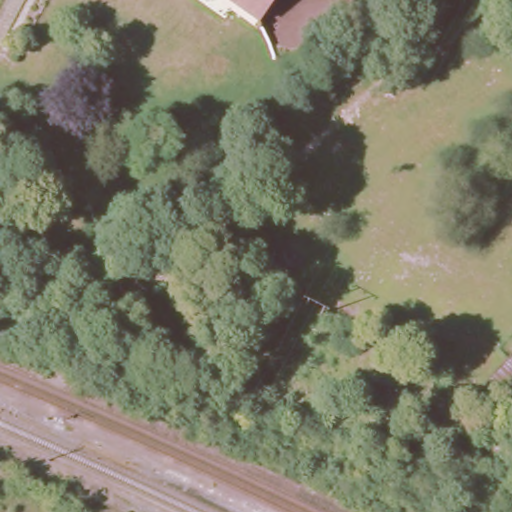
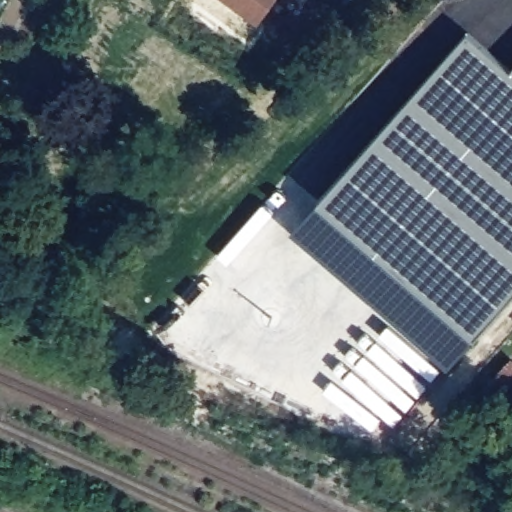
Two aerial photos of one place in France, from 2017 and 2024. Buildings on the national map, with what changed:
unchanged [(282,0),(262,27),(224,0),(282,0)]
new [(510,68),(512,66),(512,295),(475,337),(447,369),(292,230),(318,200),(467,31),(510,68)]
unchanged [(483,387),(512,353),(512,416),(483,387)]

